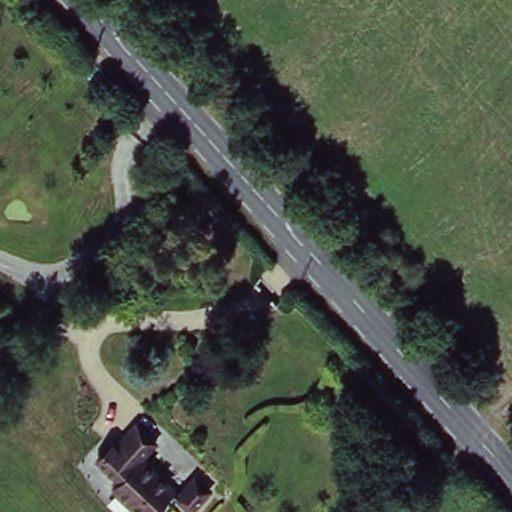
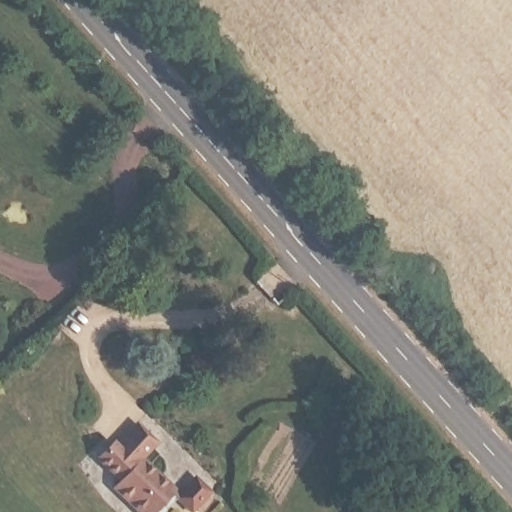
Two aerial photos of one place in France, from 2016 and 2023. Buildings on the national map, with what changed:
unchanged [(183,495),(202,475),(215,489),(197,509),(177,490),(155,512),(147,512),(119,485),(126,478),(103,456),(116,441),(120,445),(137,428),(141,424),(160,442),(156,446),(144,458),(183,495)]

